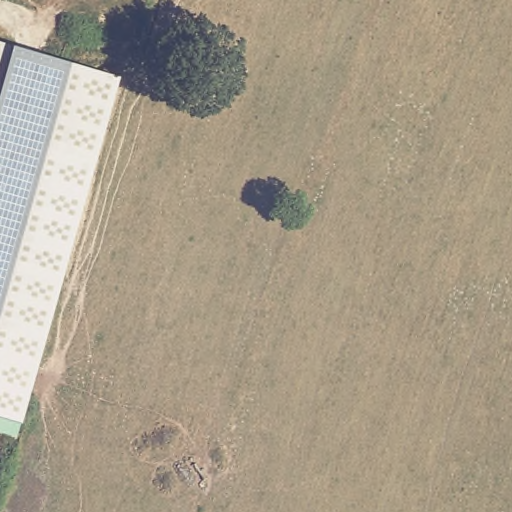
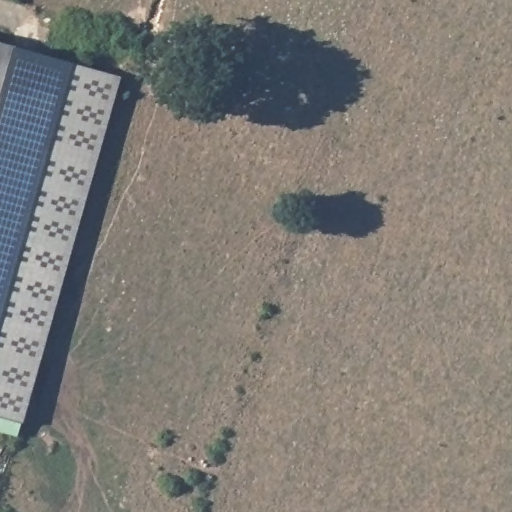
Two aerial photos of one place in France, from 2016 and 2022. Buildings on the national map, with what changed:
unchanged [(0,111),(0,43),(19,49),(0,111)]
unchanged [(15,436),(0,431),(0,111),(19,49),(121,77),(15,436)]

